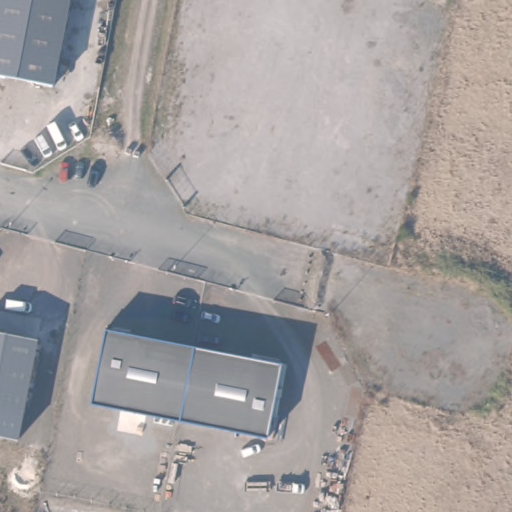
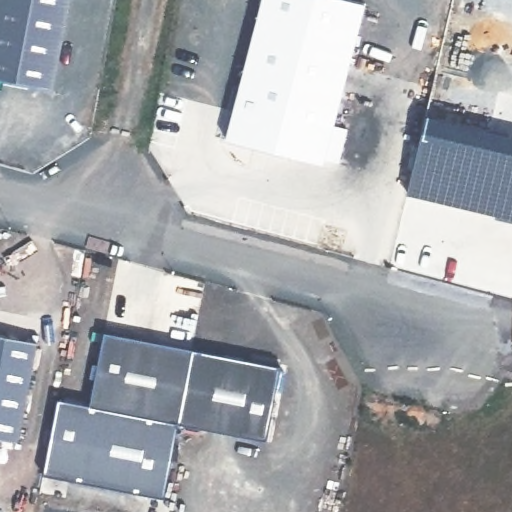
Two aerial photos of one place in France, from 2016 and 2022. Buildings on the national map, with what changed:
unchanged [(0,77),(0,0),(67,0),(51,86),(0,77)]
new [(347,126),(337,159),(325,157),(324,161),(225,136),(261,0),(366,0),(334,123),(347,126)]
new [(103,329),(132,334),(131,337),(103,331),(103,329)]
unchanged [(192,349),(177,425),(90,407),(103,332),(192,349)]
unchanged [(37,344),(21,423),(18,443),(0,440),(0,337),(37,344)]
unchanged [(279,365),(264,437),(178,419),(192,349),(279,365)]
new [(251,356),(279,361),(279,364),(250,359),(251,356)]
new [(90,407),(177,425),(164,496),(43,472),(57,398),(91,404),(90,407)]

